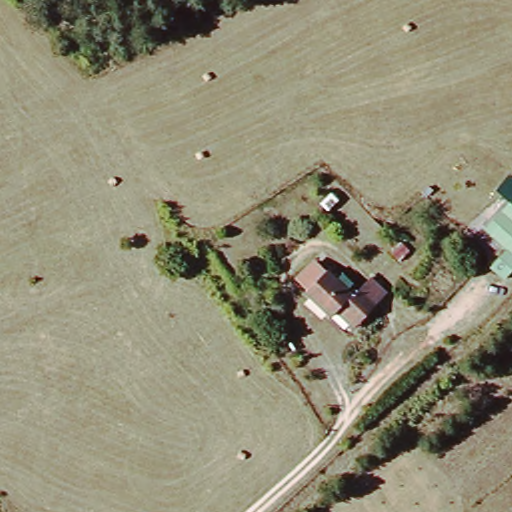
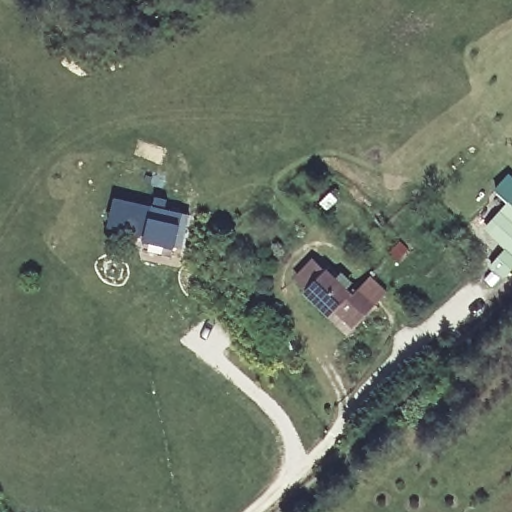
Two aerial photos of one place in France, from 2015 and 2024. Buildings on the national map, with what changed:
new [(113,196),(152,204),(154,195),(167,198),(166,207),(186,212),(178,248),(107,228),(113,196)]
unchanged [(486,259),(504,245),(488,226),(512,206),(512,261),(497,273),(486,259)]
unchanged [(340,304),(332,312),(305,288),(326,266),(352,291),(370,271),(387,287),(370,306),(358,319),(340,304)]

